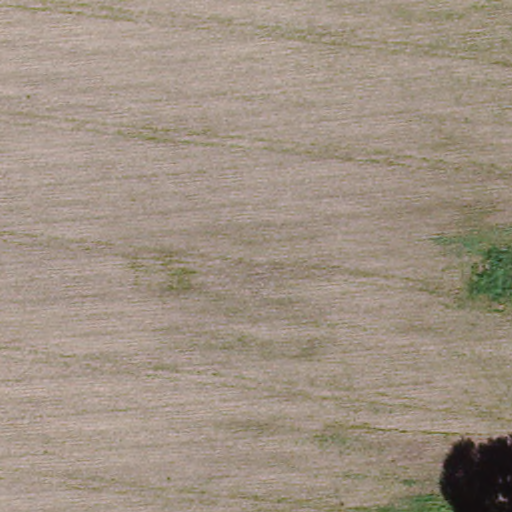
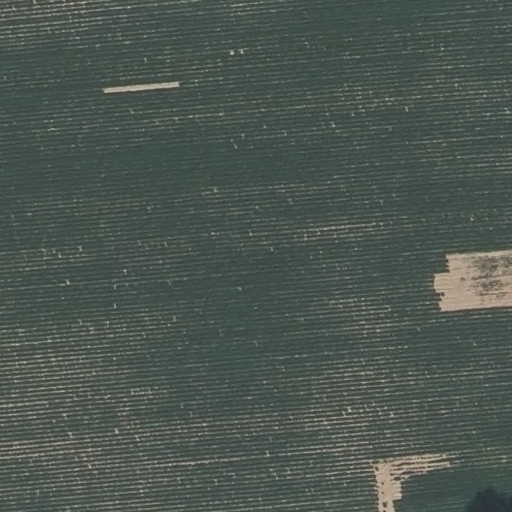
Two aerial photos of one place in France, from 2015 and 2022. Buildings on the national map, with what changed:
[]

